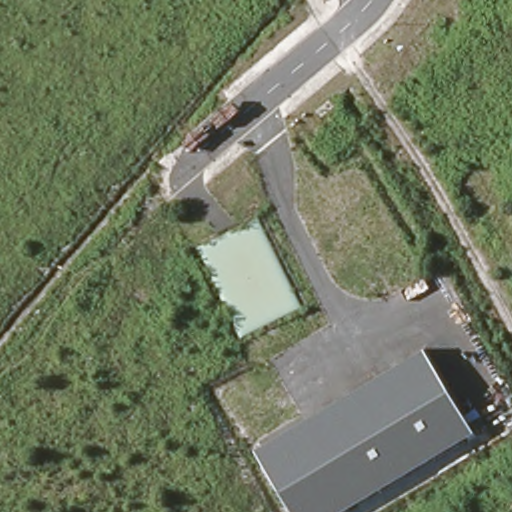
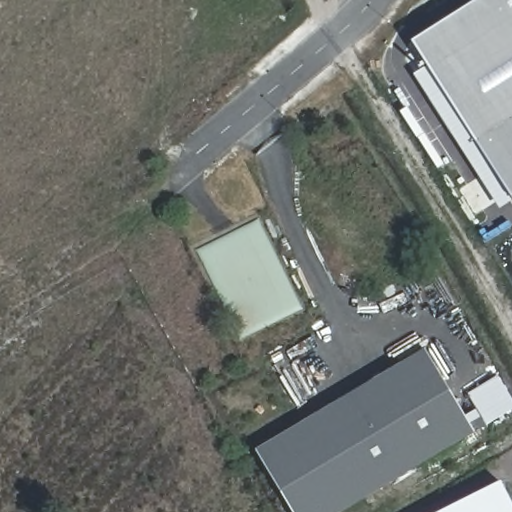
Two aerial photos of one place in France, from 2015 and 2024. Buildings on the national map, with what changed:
new [(428,66),(415,45),(485,0),(512,0),(512,202),(500,210),(414,75),(428,66)]
unchanged [(344,512),(294,512),(257,450),(427,350),(476,433),(344,512)]
new [(501,481),(512,503),(512,512),(440,512),(501,481)]

